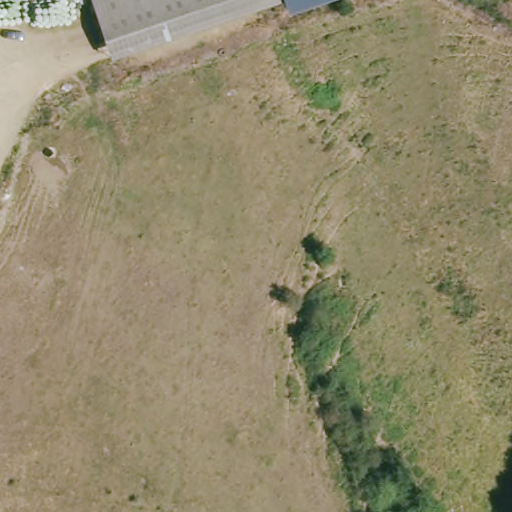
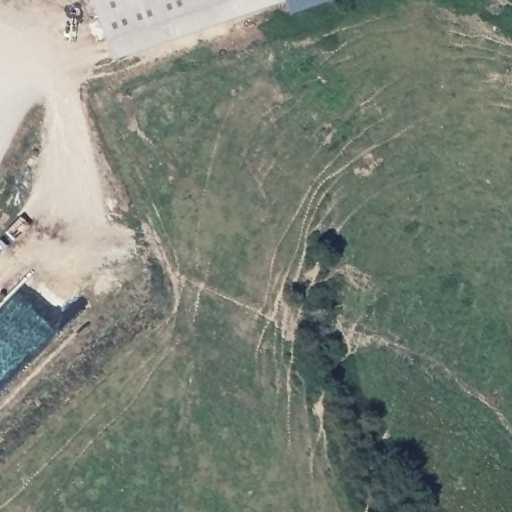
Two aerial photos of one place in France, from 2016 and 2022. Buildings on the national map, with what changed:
unchanged [(343,0),(290,17),(285,5),(111,62),(91,0),(343,0)]

